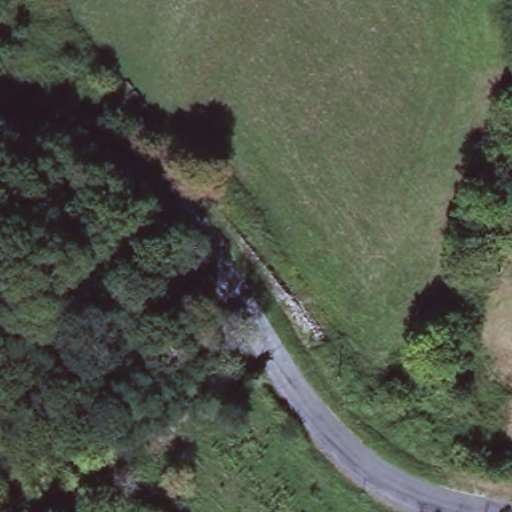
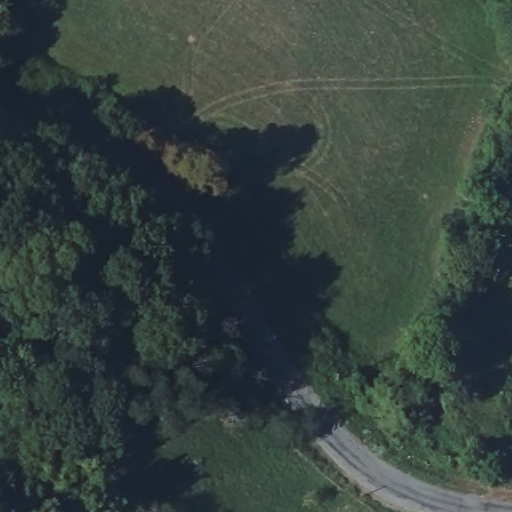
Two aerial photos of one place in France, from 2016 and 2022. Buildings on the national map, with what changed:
[]

